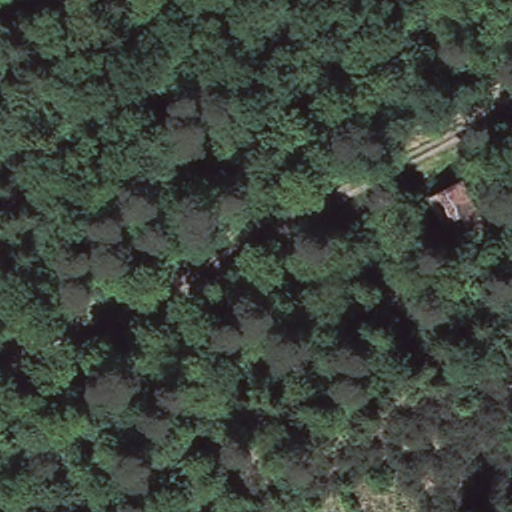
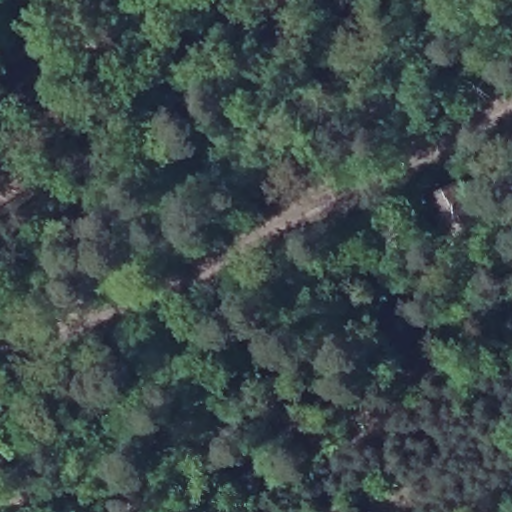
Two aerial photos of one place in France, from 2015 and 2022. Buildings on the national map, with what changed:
unchanged [(465,181),(480,217),(442,233),(426,196),(465,181)]

